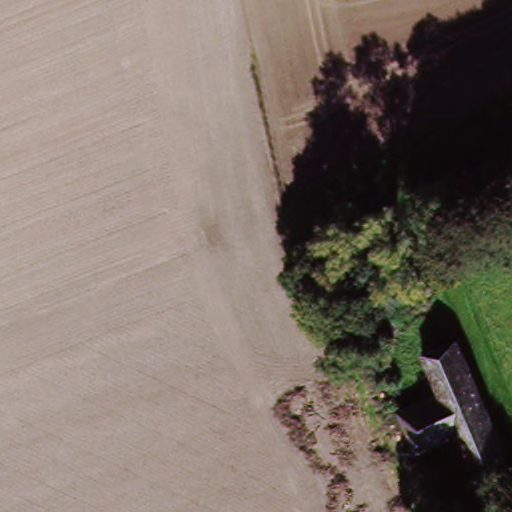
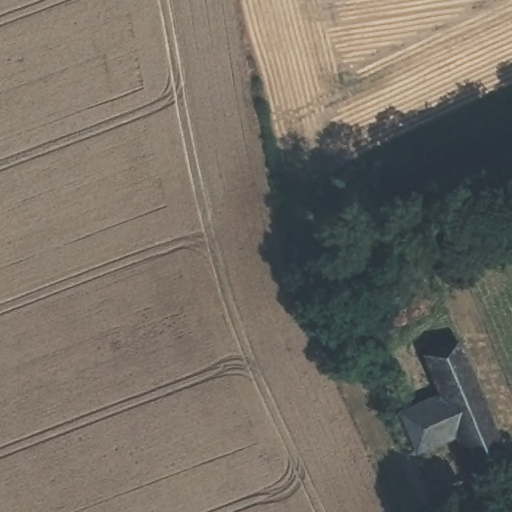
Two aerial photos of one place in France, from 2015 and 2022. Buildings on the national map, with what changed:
unchanged [(504,455),(471,470),(455,435),(437,395),(422,360),(456,345),(504,455)]
unchanged [(437,395),(455,435),(428,447),(410,407),(437,395)]

